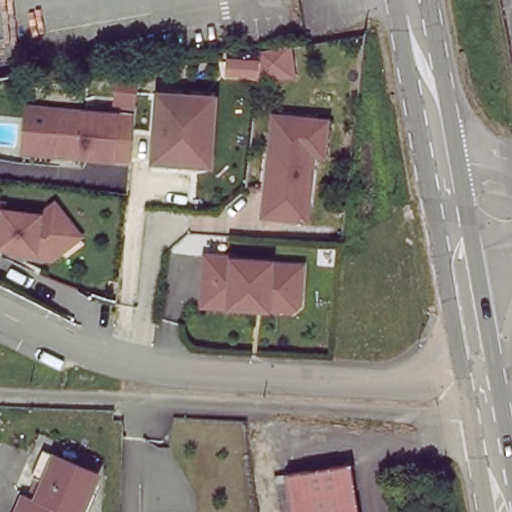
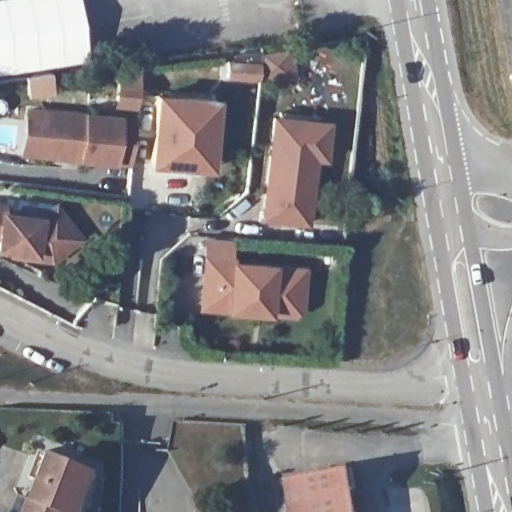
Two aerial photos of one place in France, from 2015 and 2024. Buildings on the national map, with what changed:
new [(19,73),(0,76),(0,0),(77,0),(89,62),(48,69),(52,93),(24,97),(19,73)]
new [(259,67),(260,57),(288,52),(291,82),(257,81),(257,82),(225,78),(227,63),(259,67)]
unchanged [(207,169),(196,167),(149,163),(156,95),(203,99),(213,100),(207,169)]
unchanged [(107,116),(103,160),(70,157),(71,152),(36,150),(35,150),(39,110),(107,116)]
unchanged [(325,122),(322,157),(312,156),(305,222),(263,217),(273,117),(307,121),(325,122)]
unchanged [(11,251),(12,241),(0,239),(0,205),(17,207),(16,215),(52,219),(61,212),(66,208),(92,241),(72,256),(63,262),(45,260),(25,257),(26,253),(11,251)]
unchanged [(205,259),(232,261),(232,263),(270,266),(270,267),(301,270),(299,309),(292,315),(201,308),(205,259)]
unchanged [(40,483),(36,481),(48,455),(103,479),(88,512),(22,512),(28,500),(33,502),(40,483)]
unchanged [(356,512),(291,512),(286,477),(350,468),(356,512)]

